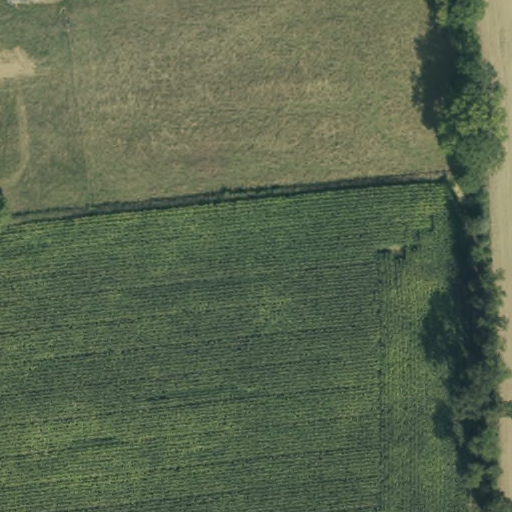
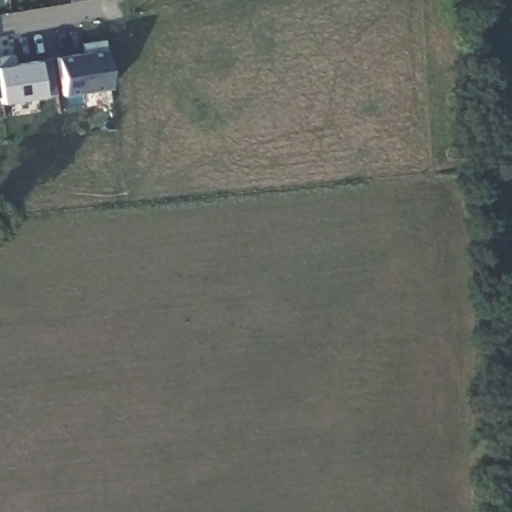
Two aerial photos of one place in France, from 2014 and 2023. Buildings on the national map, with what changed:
new [(111,86),(64,95),(57,56),(84,52),(81,42),(103,39),(111,86)]
new [(0,97),(0,56),(12,54),(15,64),(38,61),(43,96),(1,104),(0,97)]

